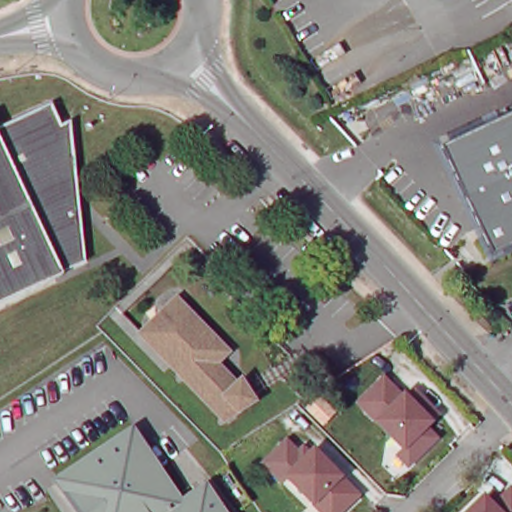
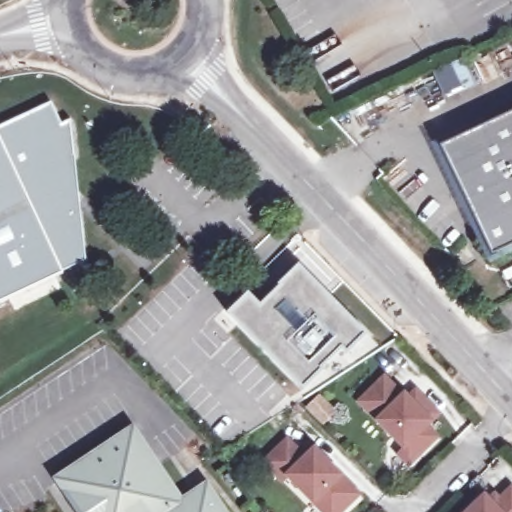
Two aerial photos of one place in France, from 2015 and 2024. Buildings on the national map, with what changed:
unchanged [(54,101),(65,121),(74,117),(79,152),(70,157),(73,178),(64,186),(81,205),(87,251),(67,261),(71,270),(0,304),(0,128),(54,101)]
unchanged [(444,149),(512,116),(512,257),(495,265),(444,149)]
new [(249,292),(261,305),(281,285),(279,283),(299,265),(365,333),(346,351),(341,347),(320,367),(322,369),(303,386),(228,311),(249,292)]
demolished [(231,414),(148,330),(171,304),(181,293),(184,297),(235,346),(224,357),(243,376),(247,373),(252,380),(259,390),(262,395),(231,414)]
unchanged [(404,396),(405,394),(418,407),(425,401),(439,415),(427,428),(438,439),(418,458),(407,447),(405,449),(360,403),(384,378),(404,396)]
unchanged [(209,486),(226,512),(83,512),(61,477),(135,429),(183,503),(209,486)]
unchanged [(295,454),(300,449),(306,455),(310,451),(355,496),(339,512),(331,512),(325,506),(319,512),(285,477),(279,483),(261,464),(283,441),(295,454)]
unchanged [(481,492),(485,496),(491,491),(496,496),(508,484),(512,489),(512,512),(460,512),(481,492)]

